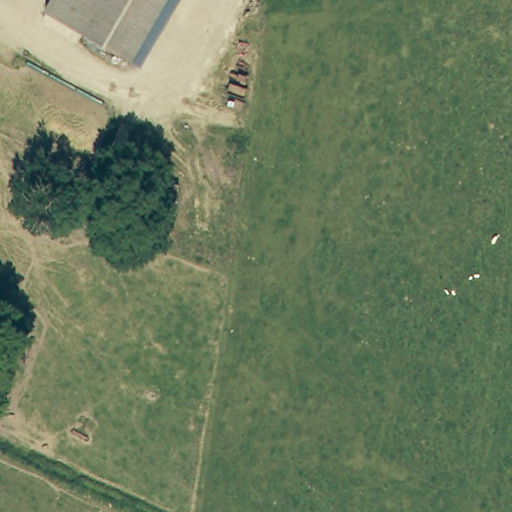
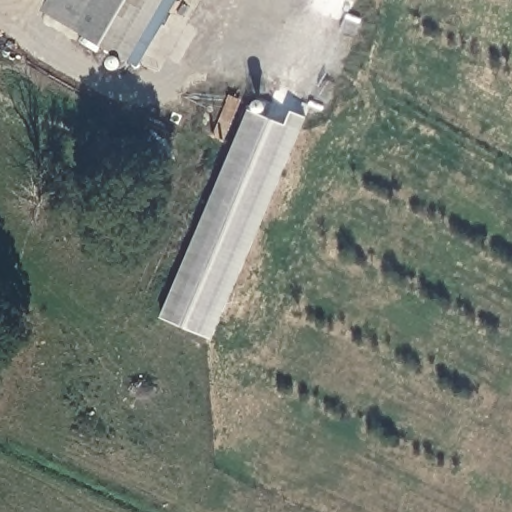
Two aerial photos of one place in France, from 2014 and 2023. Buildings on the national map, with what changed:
unchanged [(51,0),(180,0),(142,66),(44,11),(51,0)]
new [(350,0),(357,0),(355,3),(350,0)]
new [(255,101),(259,100),(264,100),(267,104),(266,111),(261,113),(256,111),(255,101)]
new [(248,109),(286,126),(292,111),(307,117),(213,340),(161,317),(248,109)]

